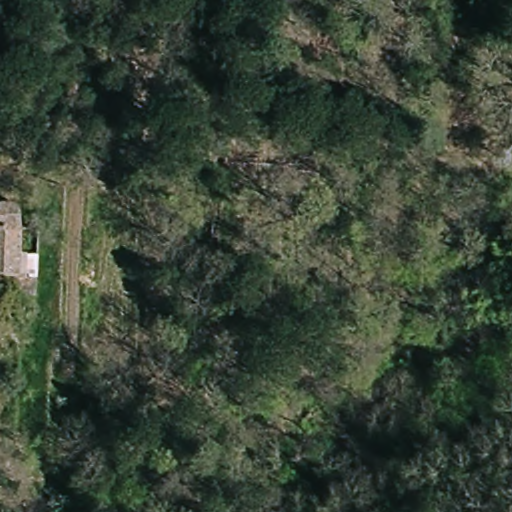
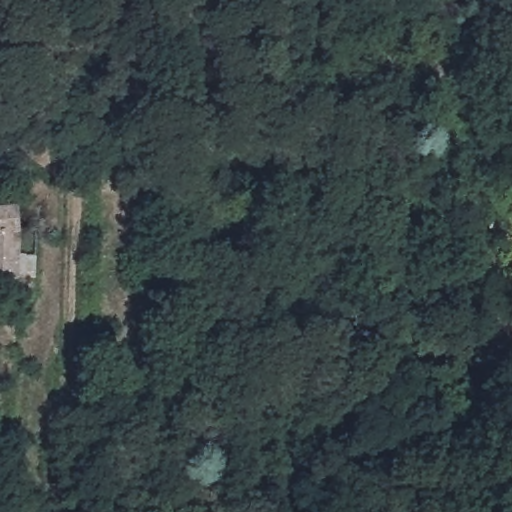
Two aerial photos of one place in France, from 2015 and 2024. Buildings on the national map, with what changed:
unchanged [(18,281),(0,281),(0,213),(21,212),(18,281)]

